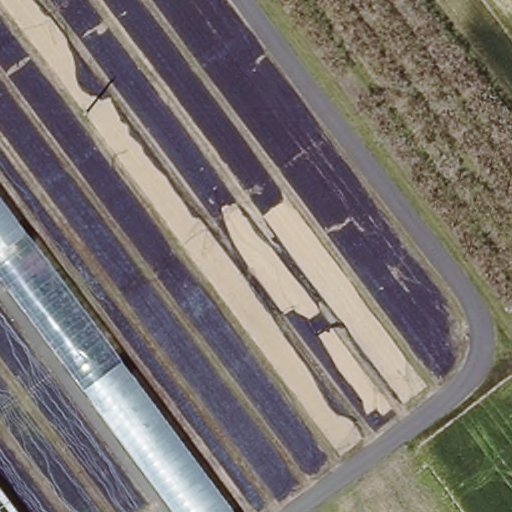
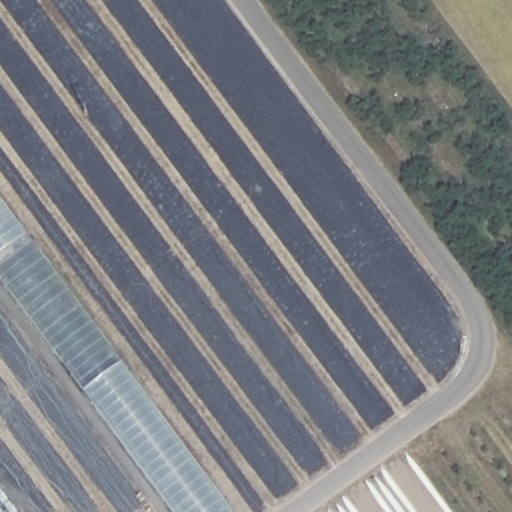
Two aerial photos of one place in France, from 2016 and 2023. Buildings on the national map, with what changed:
unchanged [(0,281),(0,200),(30,240),(119,356),(234,512),(182,512),(83,382),(0,281)]
unchanged [(19,512),(0,512),(0,487),(19,512)]

